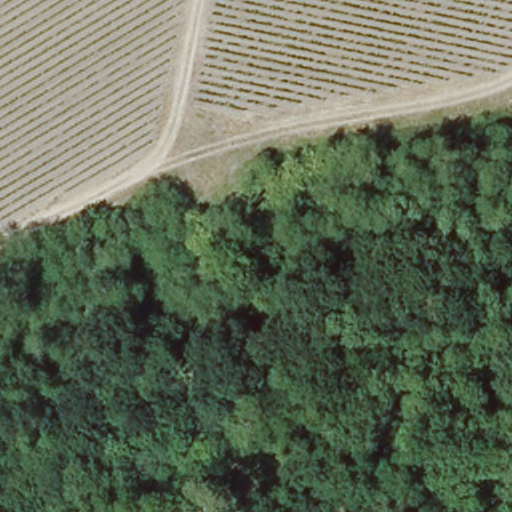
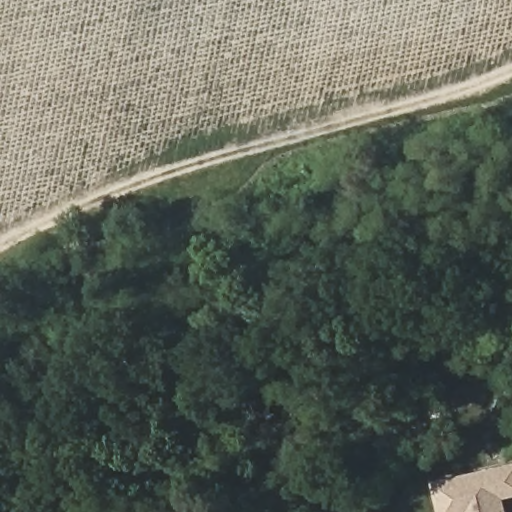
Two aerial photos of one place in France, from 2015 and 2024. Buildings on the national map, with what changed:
new [(506,498),(510,512),(440,512),(433,482),(512,464),(512,497),(506,498)]
unchanged [(261,507),(265,512),(253,512),(261,507)]

